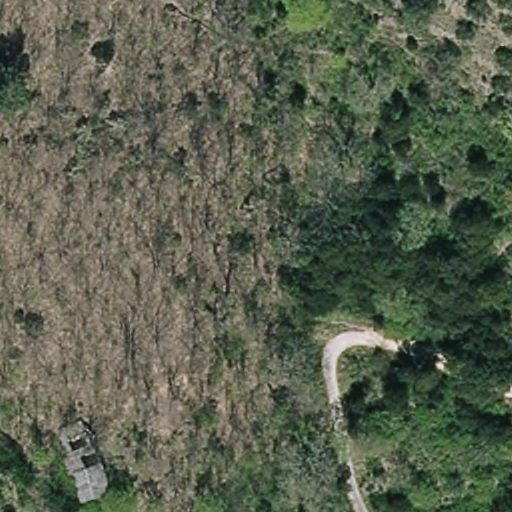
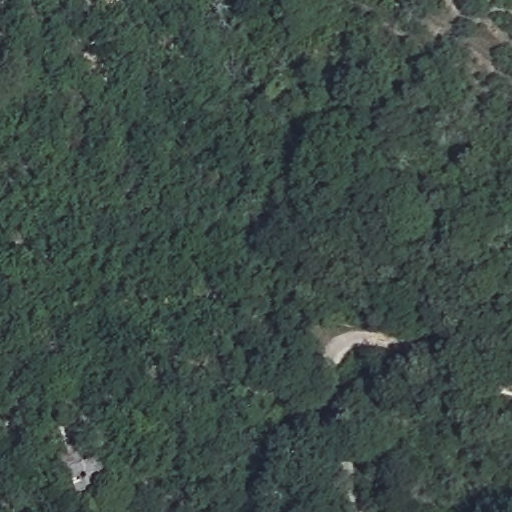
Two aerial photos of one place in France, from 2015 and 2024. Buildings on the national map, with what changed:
unchanged [(116,489),(87,499),(67,458),(100,449),(116,489)]

